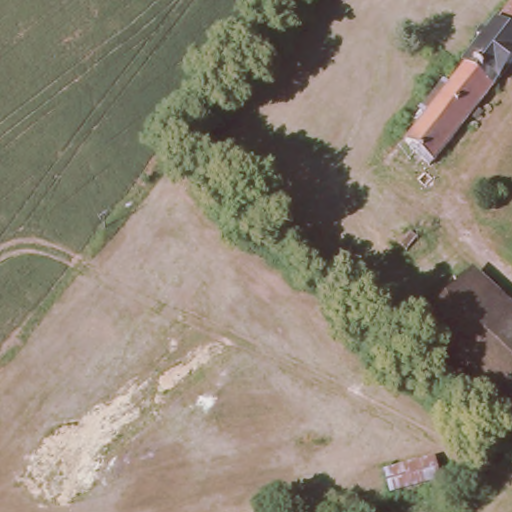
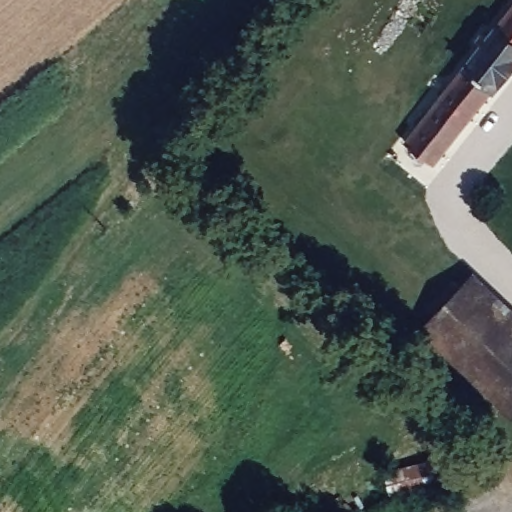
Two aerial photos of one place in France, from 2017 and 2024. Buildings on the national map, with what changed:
unchanged [(427,161),(397,137),(510,0),(512,0),(512,56),(427,161)]
unchanged [(512,308),(512,416),(509,420),(421,330),(471,270),(512,308)]
unchanged [(437,481),(387,495),(383,469),(432,454),(437,481)]

